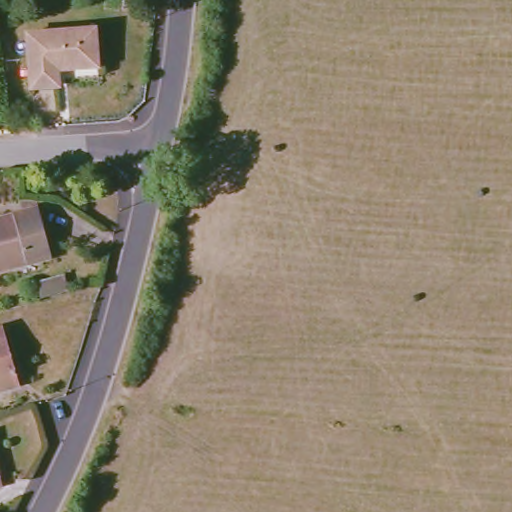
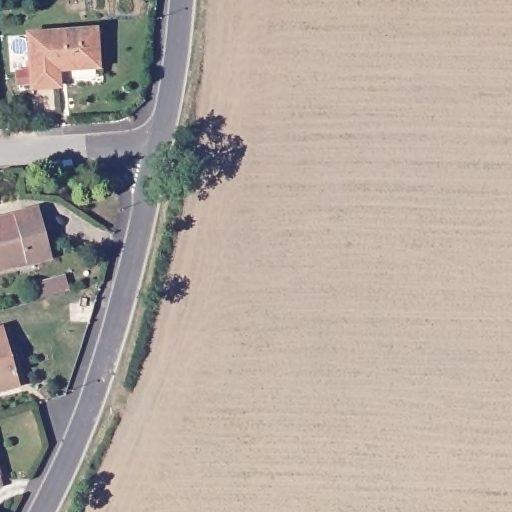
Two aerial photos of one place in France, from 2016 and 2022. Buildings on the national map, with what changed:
unchanged [(57,67),(56,86),(32,87),(32,35),(95,33),(97,67),(57,67)]
unchanged [(52,248),(0,263),(0,221),(41,209),(52,248)]
unchanged [(17,384),(0,389),(0,329),(2,328),(17,384)]

